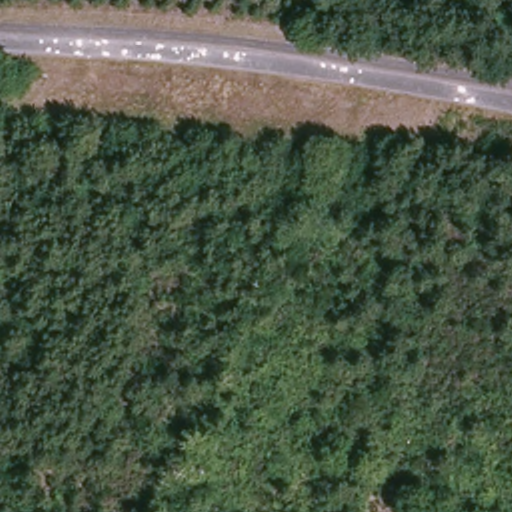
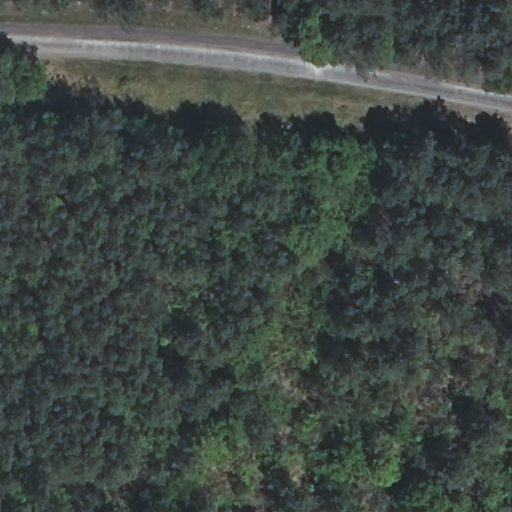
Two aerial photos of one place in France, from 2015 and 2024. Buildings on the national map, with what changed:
[]

